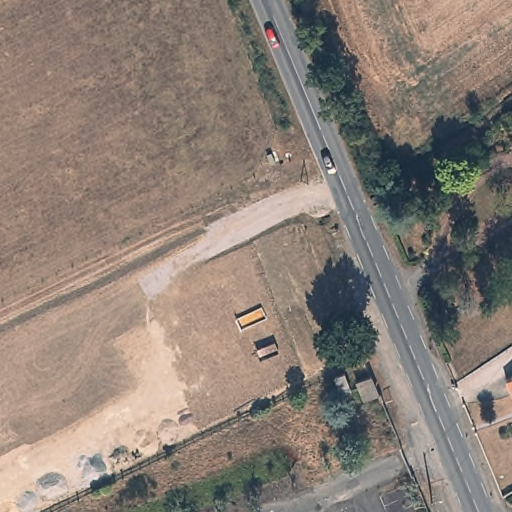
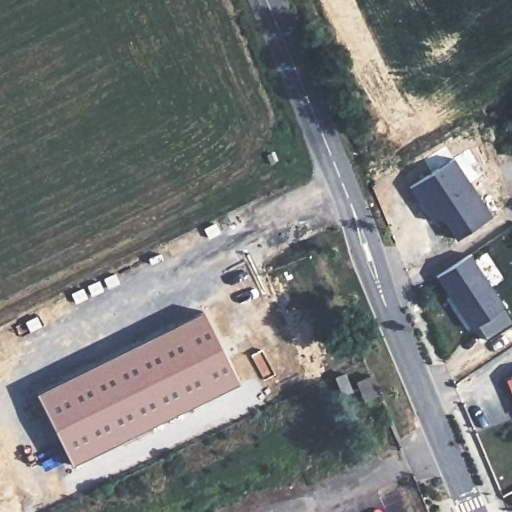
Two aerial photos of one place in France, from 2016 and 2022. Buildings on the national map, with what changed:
new [(38,392),(205,310),(239,380),(73,465),(38,392)]
unchanged [(383,393),(360,402),(351,381),(374,371),(383,393)]
unchanged [(508,388),(512,387),(512,398),(508,388)]

